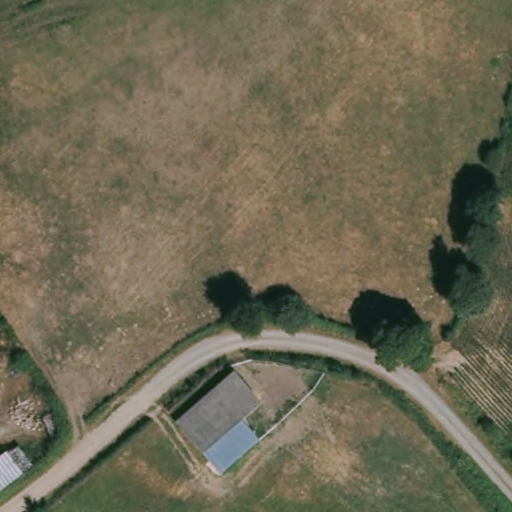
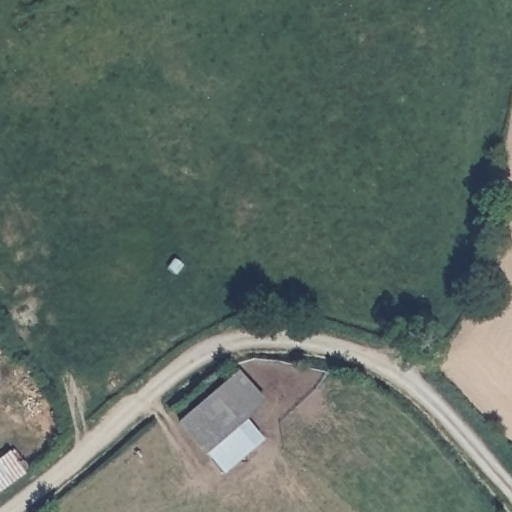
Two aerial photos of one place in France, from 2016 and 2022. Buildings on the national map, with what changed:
unchanged [(205,453),(177,421),(238,370),(265,400),(205,453)]
unchanged [(35,458),(30,461),(24,465),(0,483),(0,453),(20,438),(35,458)]

